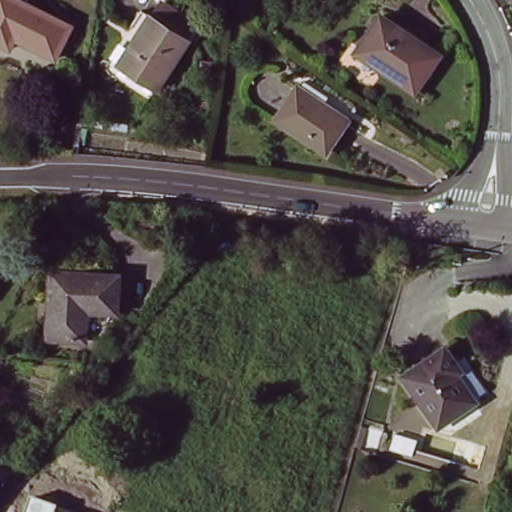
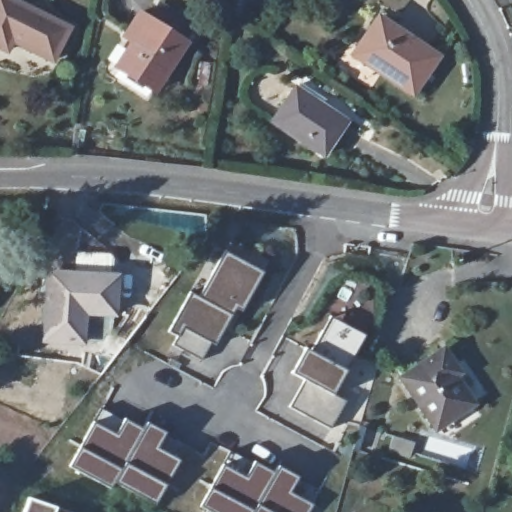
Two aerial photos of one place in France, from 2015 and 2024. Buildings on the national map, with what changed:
unchanged [(68,29),(52,61),(13,42),(8,51),(0,47),(0,0),(12,0),(68,29)]
unchanged [(359,50),(380,19),(393,28),(427,51),(436,57),(412,93),(379,71),(355,55),(359,50)]
unchanged [(151,105),(113,81),(133,50),(125,44),(135,28),(147,35),(157,21),(190,42),(151,105)]
unchanged [(295,89),(345,121),(324,154),(274,122),(295,89)]
new [(215,345),(210,343),(201,361),(172,345),(177,337),(168,332),(190,292),(199,297),(223,250),(248,263),(263,272),(257,282),(241,311),(235,308),(229,319),(215,345)]
unchanged [(108,313),(80,312),(77,341),(40,339),(45,275),(110,277),(108,313)]
new [(302,378),(292,372),(305,348),(309,351),(331,316),(365,333),(342,367),(346,371),(334,394),(346,402),(331,428),(290,407),(302,378)]
unchanged [(443,348),(454,366),(449,369),(471,402),(436,427),(402,377),(443,348)]
new [(81,448),(94,425),(117,437),(124,421),(142,432),(145,425),(162,433),(154,450),(177,461),(163,487),(155,502),(113,481),(110,487),(73,467),(81,448)]
new [(255,466),(274,476),(278,467),(297,478),(288,493),(310,507),(307,512),(217,512),(202,505),(211,489),(224,466),(245,480),(255,466)]
unchanged [(55,507),(53,512),(27,512),(32,498),(55,507)]

